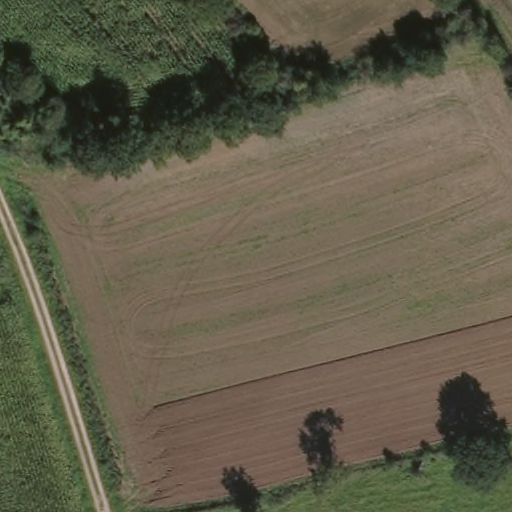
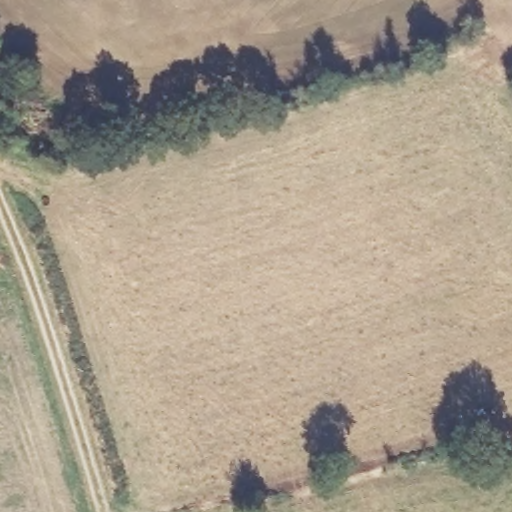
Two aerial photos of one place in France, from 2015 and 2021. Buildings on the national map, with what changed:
[]

